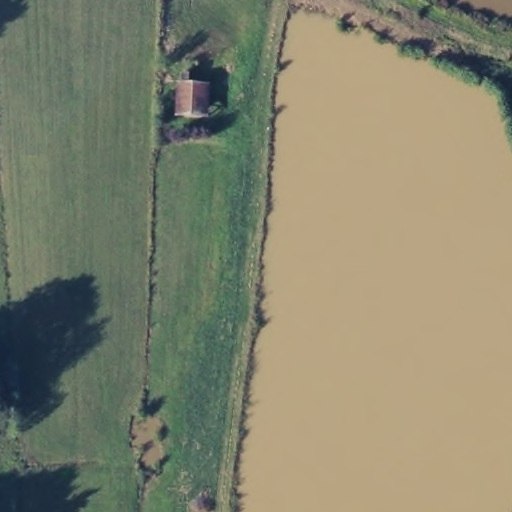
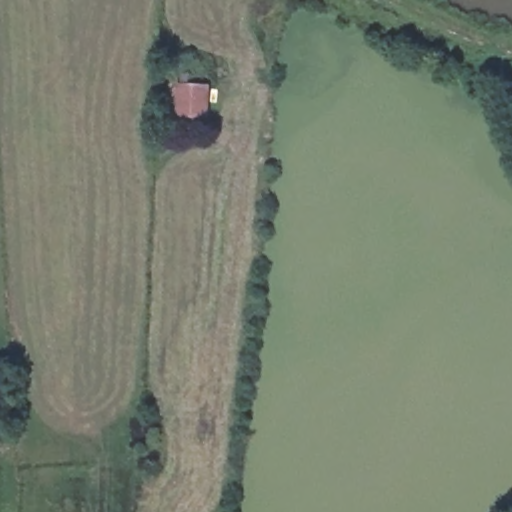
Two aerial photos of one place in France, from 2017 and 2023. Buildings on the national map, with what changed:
unchanged [(206,116),(175,115),(176,82),(209,82),(206,116)]

